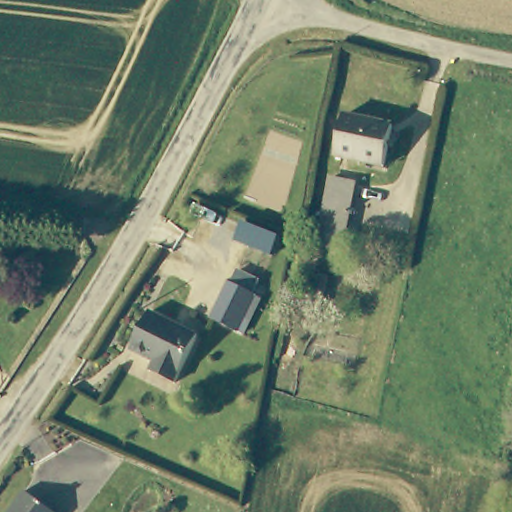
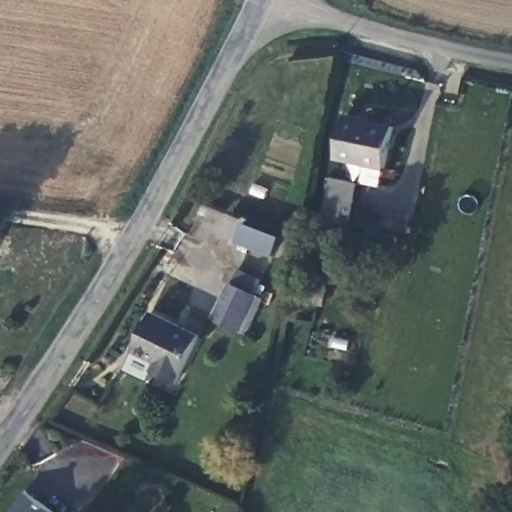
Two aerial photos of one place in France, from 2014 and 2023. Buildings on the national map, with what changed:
unchanged [(396,125),(385,167),(359,160),(339,154),(350,113),(396,125)]
unchanged [(357,185),(343,246),(323,241),(338,181),(357,185)]
unchanged [(316,274),(310,301),(295,297),(302,271),(316,274)]
unchanged [(237,277),(257,286),(250,301),(234,337),(206,324),(224,289),(230,292),(237,277)]
unchanged [(202,339),(181,383),(156,371),(160,366),(134,352),(153,316),(202,339)]
unchanged [(55,512),(7,512),(22,490),(55,512)]

